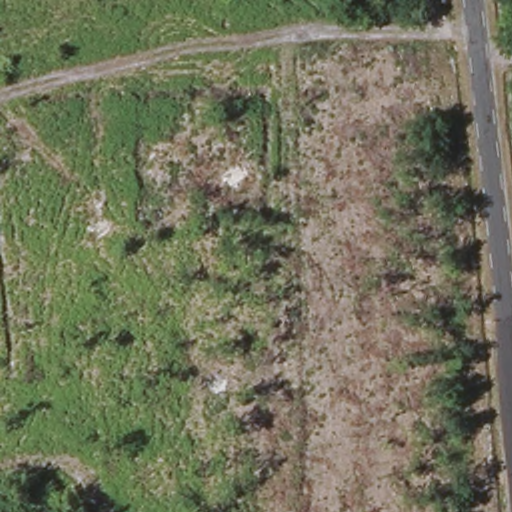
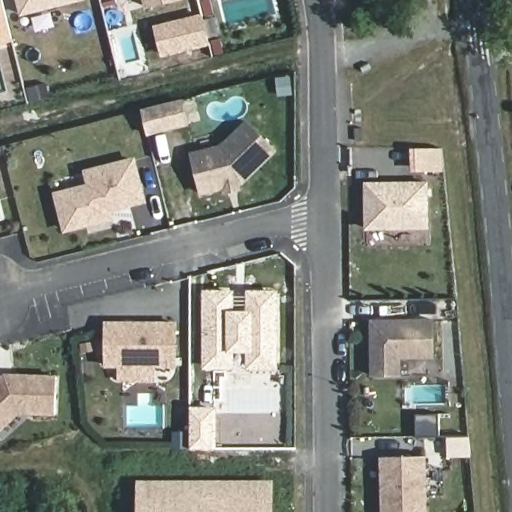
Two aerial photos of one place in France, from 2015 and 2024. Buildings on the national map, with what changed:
new [(0,43),(0,0),(3,0),(14,40),(0,43)]
new [(22,13),(19,0),(84,0),(22,13)]
new [(149,4),(148,0),(168,0),(149,4)]
new [(204,14),(212,45),(165,56),(158,26),(204,14)]
new [(189,126),(146,136),(140,108),(182,98),(189,126)]
new [(240,186),(240,188),(224,194),(221,189),(200,195),(189,152),(220,145),(245,119),(277,151),(240,186)]
new [(415,151),(440,151),(442,171),(415,171),(415,151)]
new [(63,232),(52,191),(85,183),(83,170),(135,157),(146,202),(113,210),(115,221),(63,232)]
new [(428,180),(428,229),(365,230),(363,181),(428,180)]
new [(0,217),(0,205),(3,216),(0,217)]
new [(202,368),(203,289),(234,289),(234,296),(246,296),(246,289),(278,289),(277,370),(246,369),(246,351),(234,351),(233,369),(202,368)]
new [(435,357),(400,358),(401,376),(370,377),(369,319),(435,318),(435,357)]
new [(177,321),(176,368),(103,367),(104,320),(177,321)]
new [(2,431),(0,429),(0,376),(2,372),(57,374),(55,416),(18,413),(2,431)]
new [(216,449),(190,449),(190,406),(217,407),(216,449)]
new [(381,512),(380,457),(426,455),(428,512),(381,512)]
new [(273,512),(136,512),(136,479),(273,481),(273,512)]

